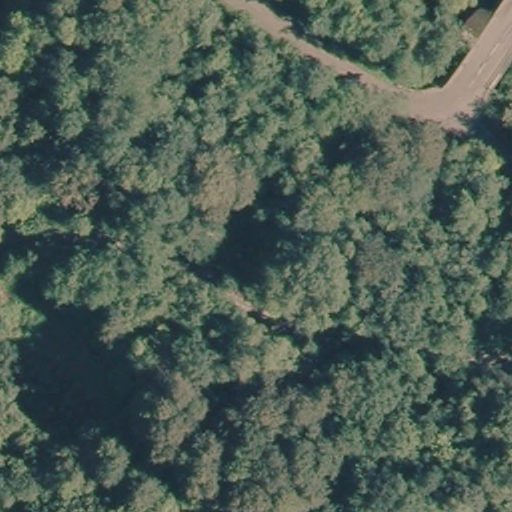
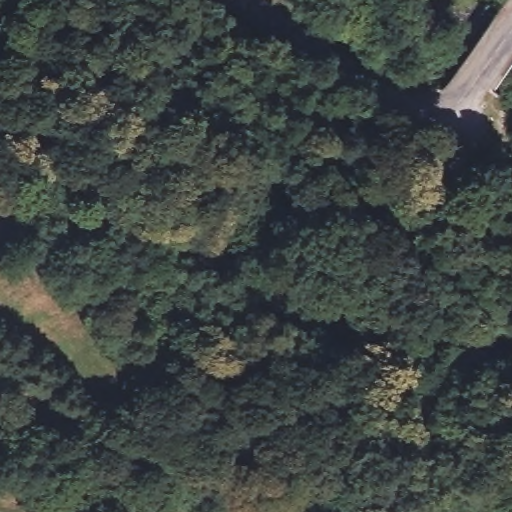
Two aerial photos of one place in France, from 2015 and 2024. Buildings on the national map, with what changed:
unchanged [(242,197),(216,220),(190,196),(216,173),(242,197)]

